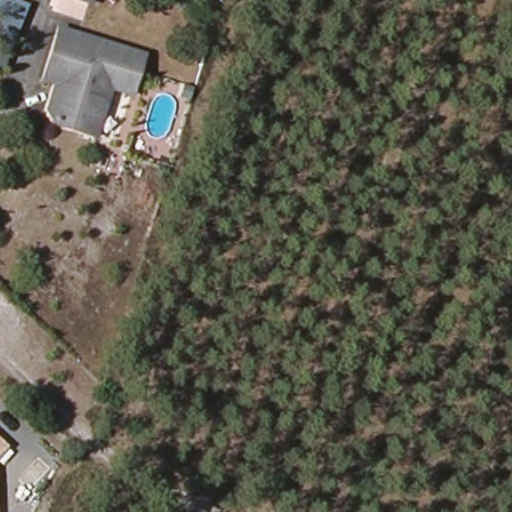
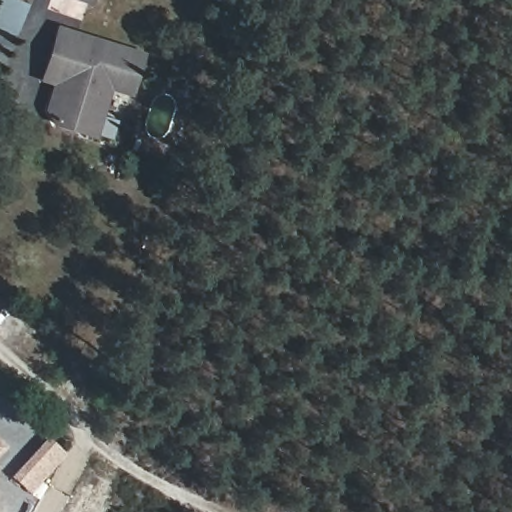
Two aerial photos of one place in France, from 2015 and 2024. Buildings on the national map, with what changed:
unchanged [(52,123),(44,107),(54,73),(45,70),(58,25),(68,29),(131,48),(140,51),(135,68),(129,89),(107,84),(94,135),(71,129),(52,123)]
new [(0,59),(0,38),(7,41),(0,59)]
new [(46,436),(67,454),(30,493),(10,476),(46,436)]
unchanged [(0,457),(0,440),(9,447),(0,457)]

